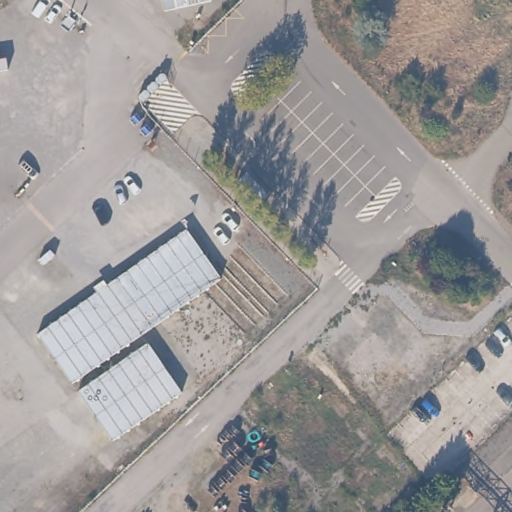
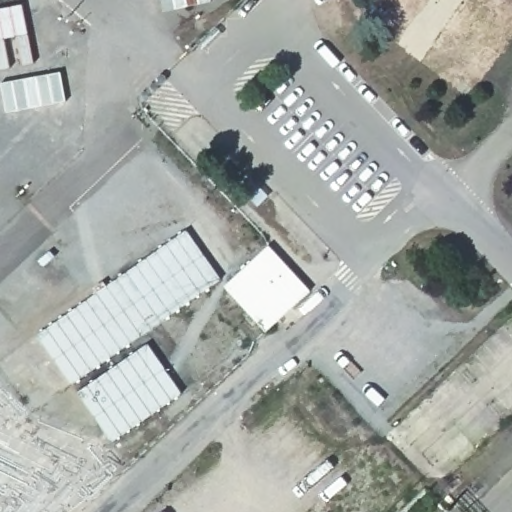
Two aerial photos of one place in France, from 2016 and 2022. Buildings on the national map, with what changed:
new [(270,242),(312,290),(267,331),(225,285),(270,242)]

